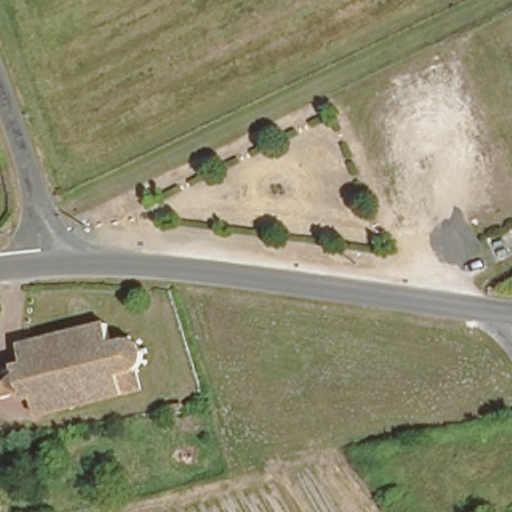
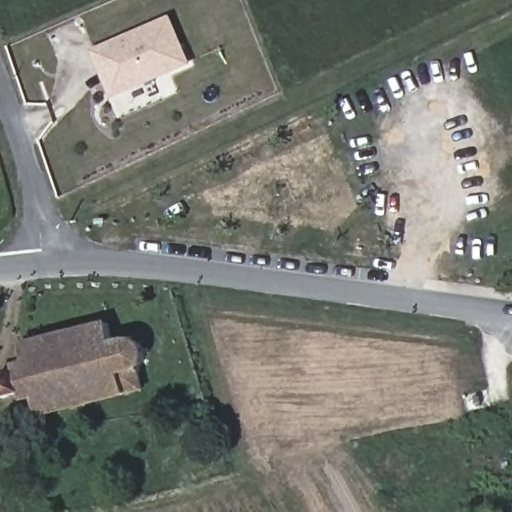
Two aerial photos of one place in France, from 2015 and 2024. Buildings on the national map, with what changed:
new [(112,100),(92,50),(171,15),(192,65),(112,100)]
unchanged [(35,423),(31,405),(20,408),(17,400),(0,404),(0,383),(13,380),(13,372),(22,370),(19,350),(105,330),(110,347),(131,347),(138,351),(141,362),(140,371),(131,376),(135,400),(35,423)]

